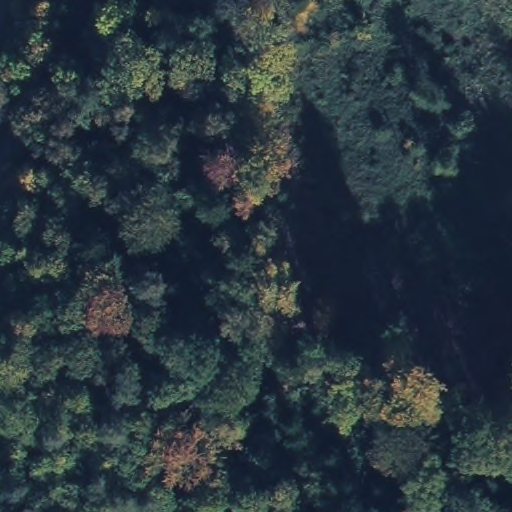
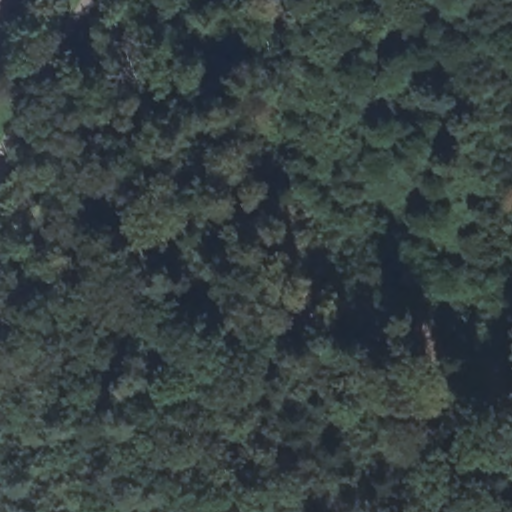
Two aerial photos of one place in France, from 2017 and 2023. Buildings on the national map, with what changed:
[]

